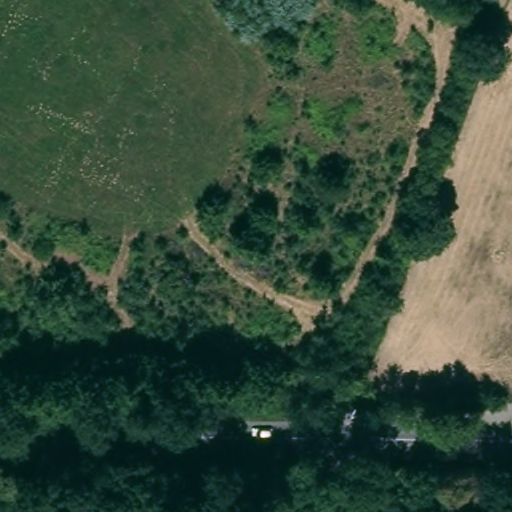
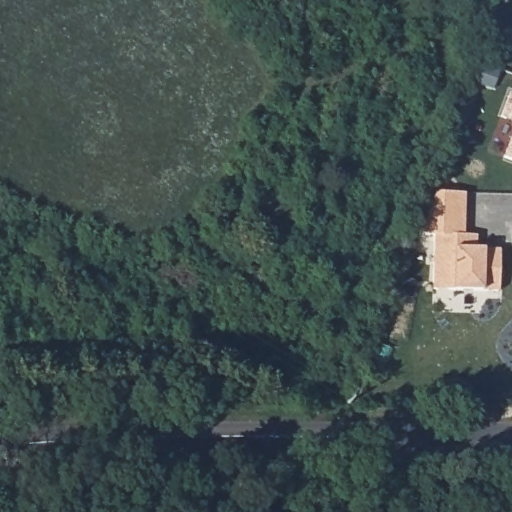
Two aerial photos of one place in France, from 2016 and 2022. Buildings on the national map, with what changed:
new [(510,92),(512,93),(512,121),(500,117),(510,92)]
new [(512,135),(512,162),(503,159),(512,135)]
new [(483,253),(507,254),(505,295),(440,294),(441,240),(427,240),(443,197),(472,198),(471,240),(483,240),(483,253)]

